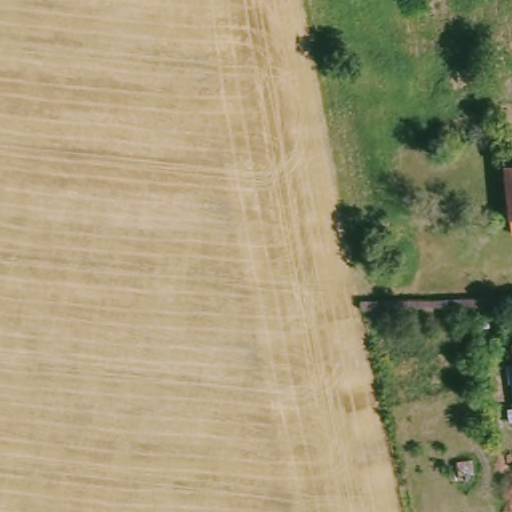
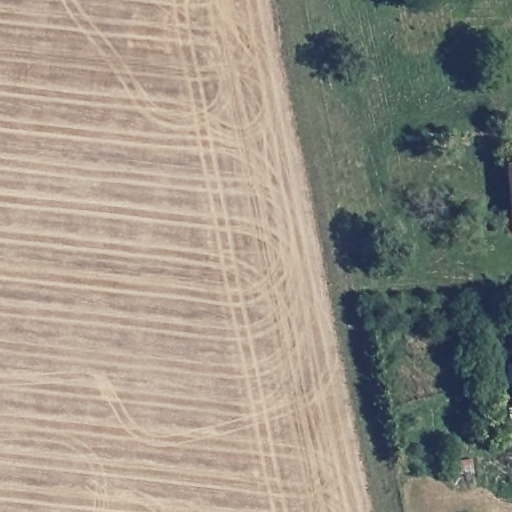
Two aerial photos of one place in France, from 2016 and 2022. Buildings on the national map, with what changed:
unchanged [(510,218),(506,165),(512,164),(512,237),(512,238),(510,218)]
unchanged [(511,343),(512,342),(512,353),(511,343)]

